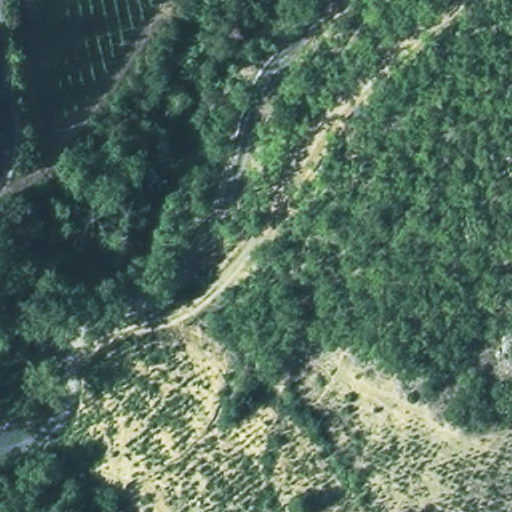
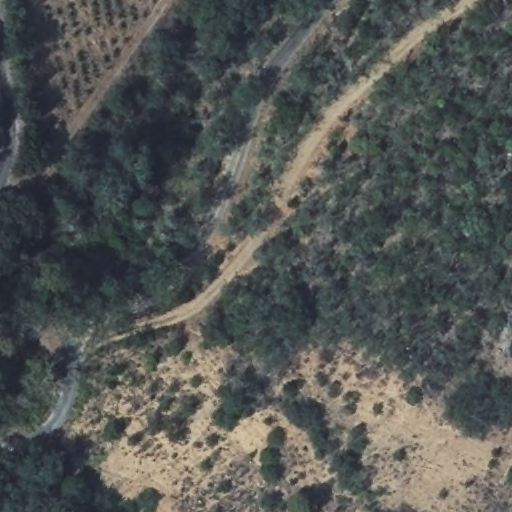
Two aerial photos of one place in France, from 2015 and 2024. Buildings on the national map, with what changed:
[]

